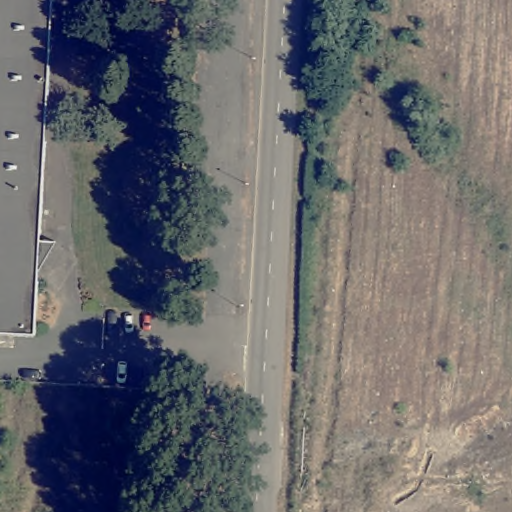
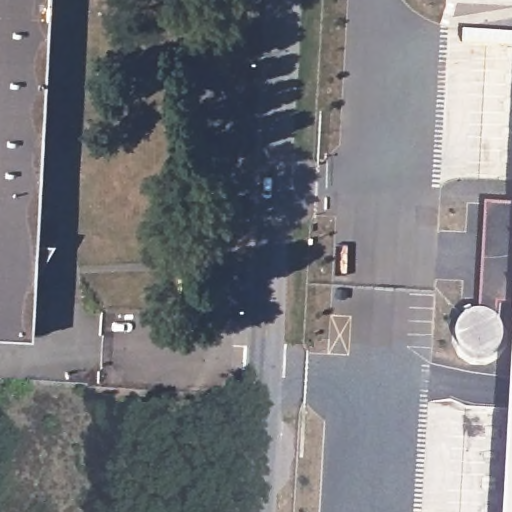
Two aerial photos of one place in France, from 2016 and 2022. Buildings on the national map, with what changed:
unchanged [(51,0),(38,240),(56,242),(35,277),(36,279),(34,335),(0,334),(0,0),(51,0)]
new [(486,207),(512,203),(512,304),(481,306),(486,207)]
new [(512,388),(512,512),(505,512),(512,388)]

